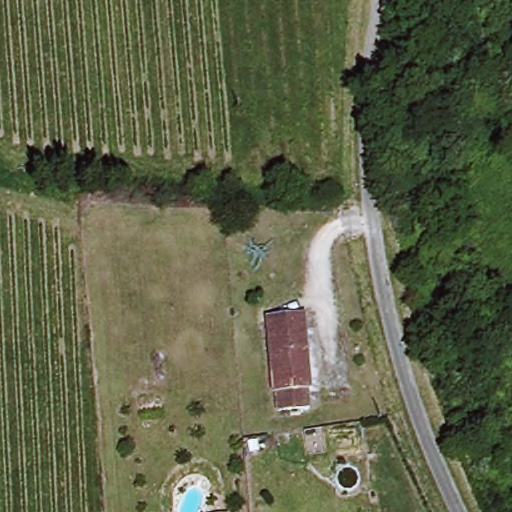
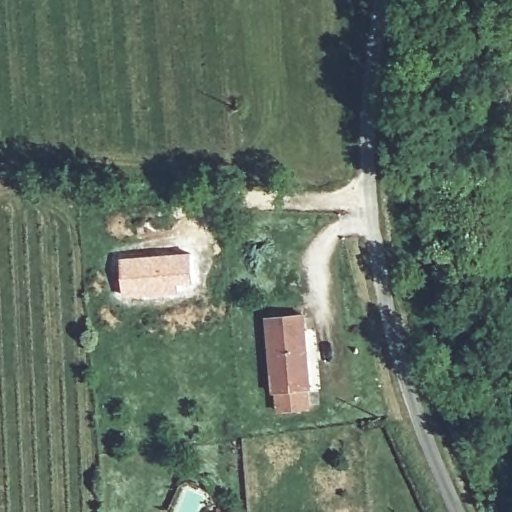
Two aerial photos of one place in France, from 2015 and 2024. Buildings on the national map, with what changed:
new [(191,252),(193,286),(181,286),(181,294),(122,297),(118,257),(191,252)]
unchanged [(272,392),(268,392),(263,317),(302,313),(306,406),(273,408),(272,392)]

